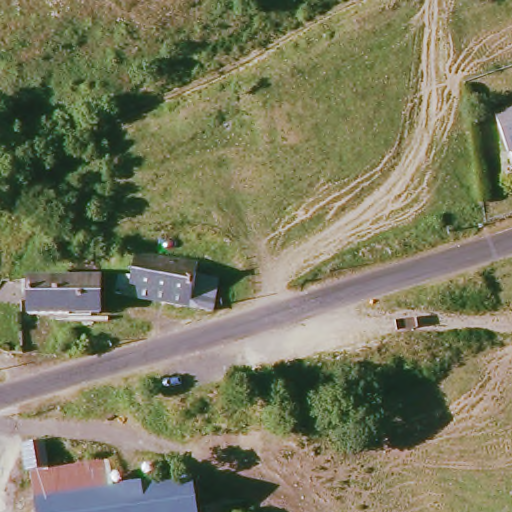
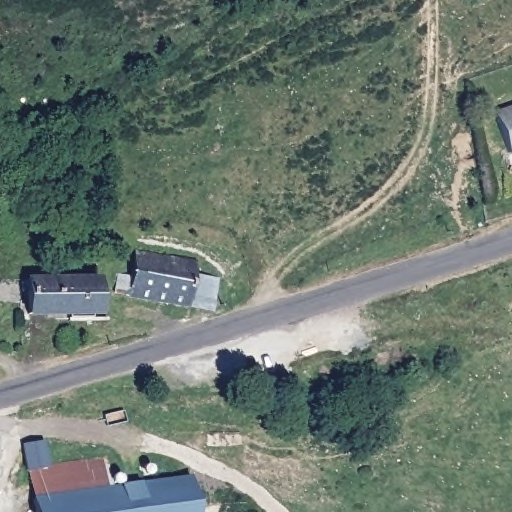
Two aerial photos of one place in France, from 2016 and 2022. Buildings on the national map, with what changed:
unchanged [(491,110),(512,103),(512,147),(505,149),(491,110)]
unchanged [(207,309),(190,303),(110,289),(117,265),(127,267),(132,248),(195,258),(195,271),(219,276),(212,308),(207,309)]
unchanged [(30,312),(30,291),(24,291),(24,281),(29,281),(30,278),(102,279),(102,311),(30,312)]
unchanged [(67,426),(40,431),(37,403),(61,397),(67,426)]
unchanged [(39,464),(115,454),(121,483),(196,473),(201,512),(44,512),(39,464)]

